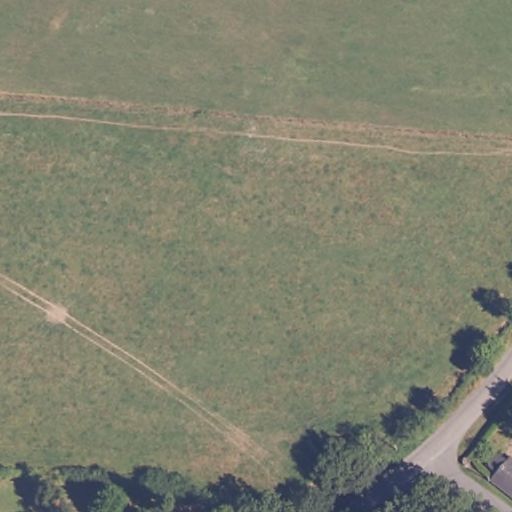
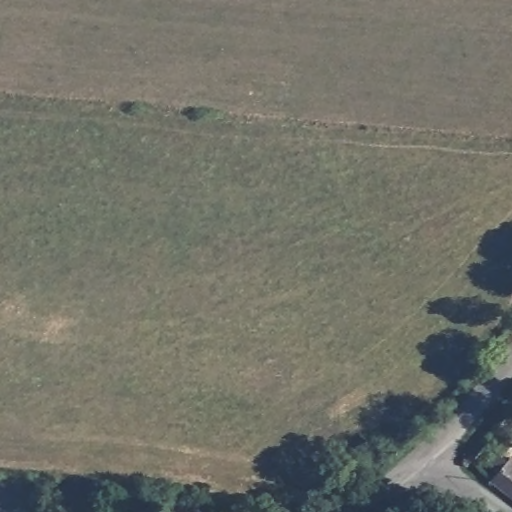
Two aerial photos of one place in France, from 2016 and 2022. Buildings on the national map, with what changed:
unchanged [(504,480),(503,475),(497,468),(496,462),(497,456),(501,452),(507,450),(512,452),(512,486),(504,480)]

